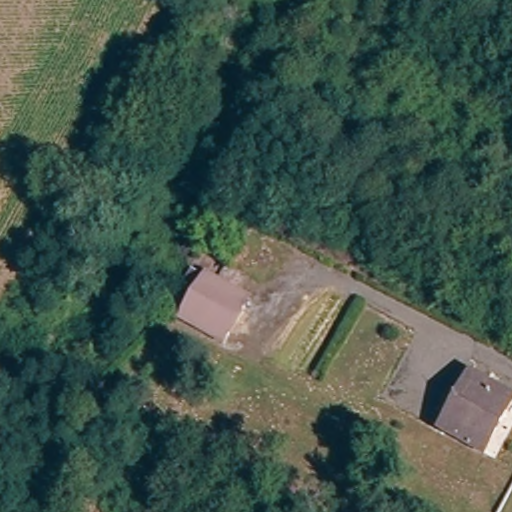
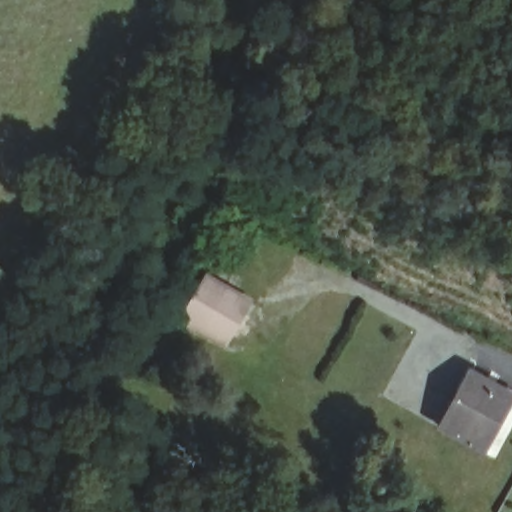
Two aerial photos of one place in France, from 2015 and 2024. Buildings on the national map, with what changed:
unchanged [(192,271),(240,297),(219,339),(166,308),(192,271)]
unchanged [(483,448),(440,427),(465,375),(508,396),(483,448)]

